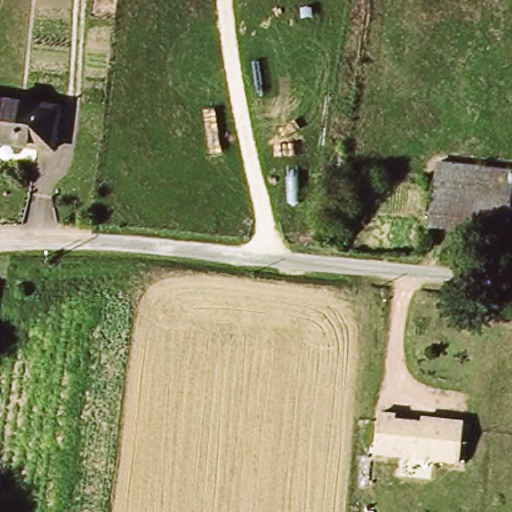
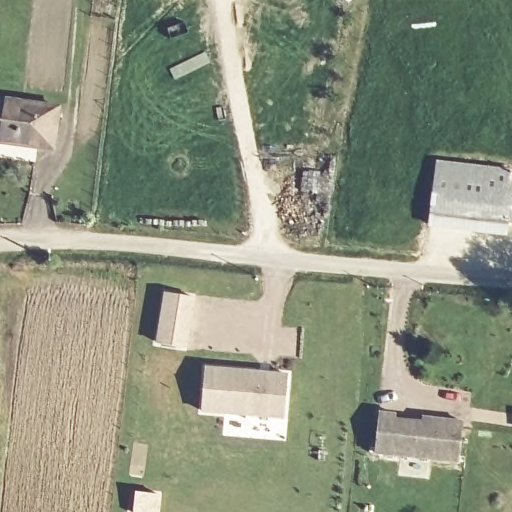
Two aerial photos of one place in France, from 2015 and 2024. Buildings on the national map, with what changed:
unchanged [(59,105),(53,148),(0,140),(0,96),(59,105)]
unchanged [(436,166),(477,167),(510,170),(508,195),(435,191),(436,166)]
unchanged [(508,195),(507,234),(433,231),(435,199),(434,199),(435,191),(508,195)]
new [(162,295),(191,300),(184,348),(155,345),(162,295)]
new [(255,376),(264,376),(282,378),(280,421),(198,416),(201,372),(255,376)]
unchanged [(459,458),(374,452),(377,412),(394,414),(394,419),(420,421),(421,416),(429,417),(462,419),(459,458)]

